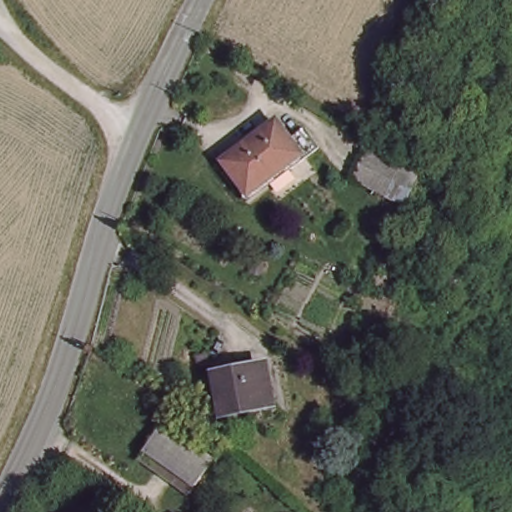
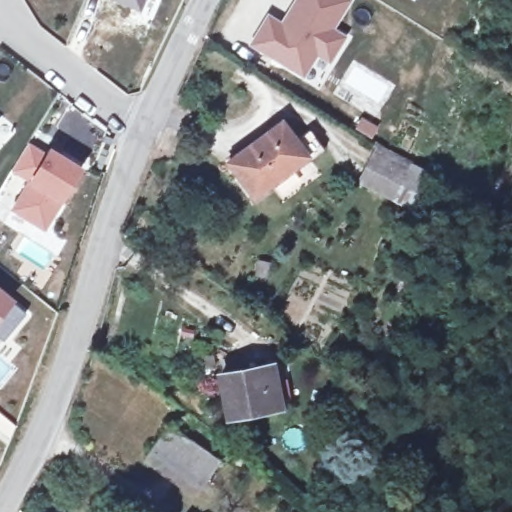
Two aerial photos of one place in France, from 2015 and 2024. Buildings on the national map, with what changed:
new [(115,0),(141,0),(138,9),(115,0)]
new [(290,12),(282,7),(286,0),(338,0),(327,18),(340,26),(326,50),(313,43),(300,65),(248,35),(264,7),(286,20),(290,12)]
new [(290,12),(286,20),(278,15),(282,7),(290,12)]
unchanged [(301,159),(249,195),(224,161),(276,124),(301,159)]
new [(33,222),(13,209),(30,180),(12,169),(28,144),(45,156),(49,149),(81,169),(53,215),(44,228),(33,222)]
unchanged [(419,176),(409,191),(376,171),(386,156),(419,176)]
new [(4,341),(0,338),(0,291),(27,313),(4,341)]
unchanged [(274,406),(228,412),(224,375),(269,369),(274,406)]
unchanged [(144,458),(151,449),(169,423),(219,459),(201,485),(194,494),(144,458)]

